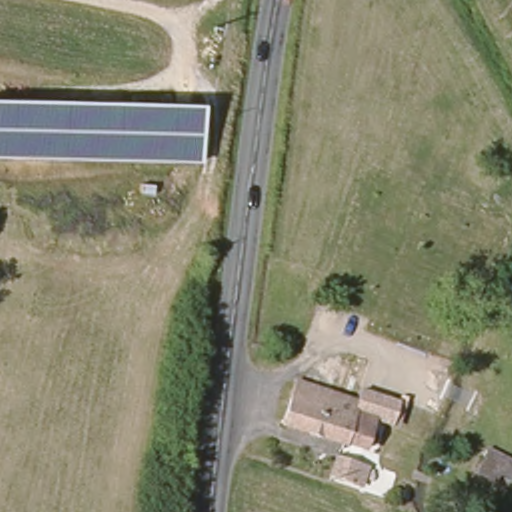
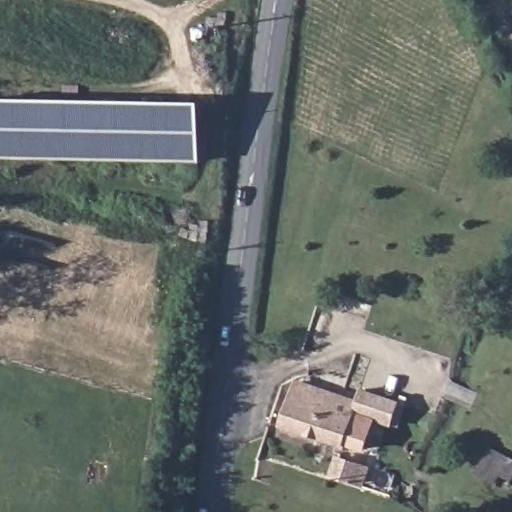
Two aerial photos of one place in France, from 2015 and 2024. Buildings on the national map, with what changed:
unchanged [(0,99),(203,101),(202,161),(0,160),(0,99)]
unchanged [(344,442),(284,421),(299,379),(358,399),(361,389),(402,404),(396,424),(376,418),(367,449),(344,442)]
unchanged [(332,478),(329,476),(335,456),(339,457),(360,465),(372,469),(365,489),(354,484),(332,478)]

